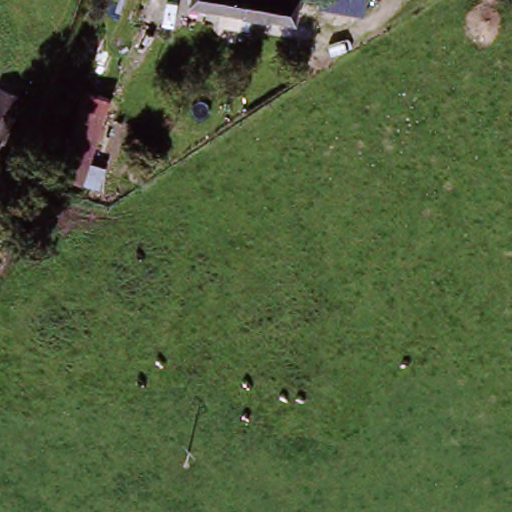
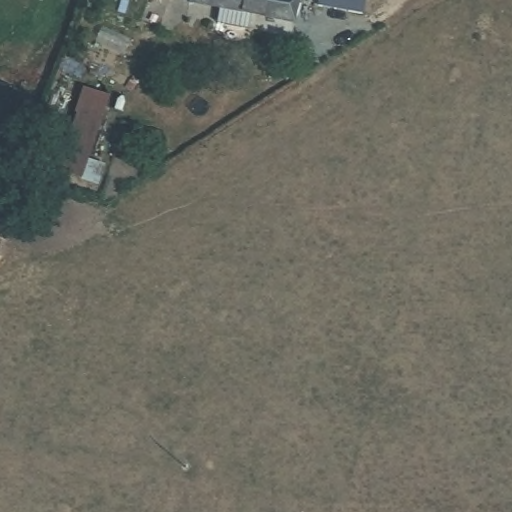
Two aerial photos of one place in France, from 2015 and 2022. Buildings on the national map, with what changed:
unchanged [(213,35),(215,19),(188,17),(190,0),(293,0),(290,26),(247,22),(247,36),(213,35)]
unchanged [(357,12),(314,10),(313,0),(358,0),(357,12)]
unchanged [(80,87),(103,92),(77,181),(53,174),(80,87)]

